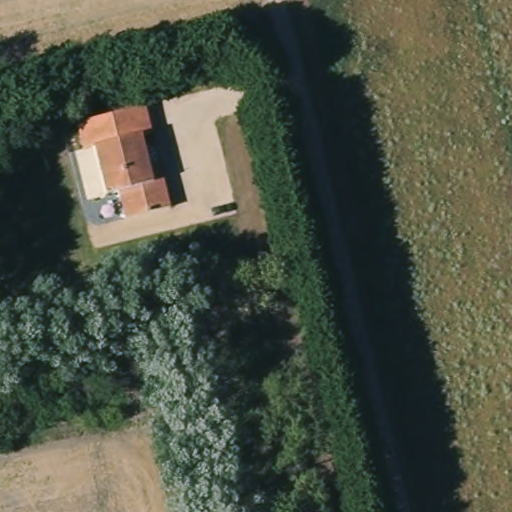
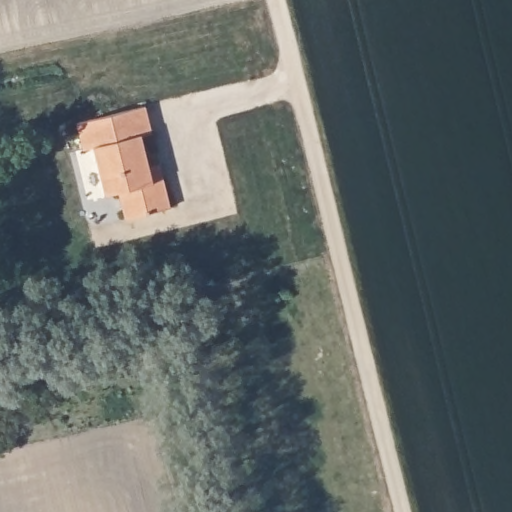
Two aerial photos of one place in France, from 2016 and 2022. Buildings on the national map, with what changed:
unchanged [(168,175),(170,182),(177,212),(130,225),(124,202),(112,204),(101,157),(91,160),(82,129),(105,122),(151,109),(156,127),(158,137),(145,140),(152,170),(166,167),(166,169),(168,175)]

